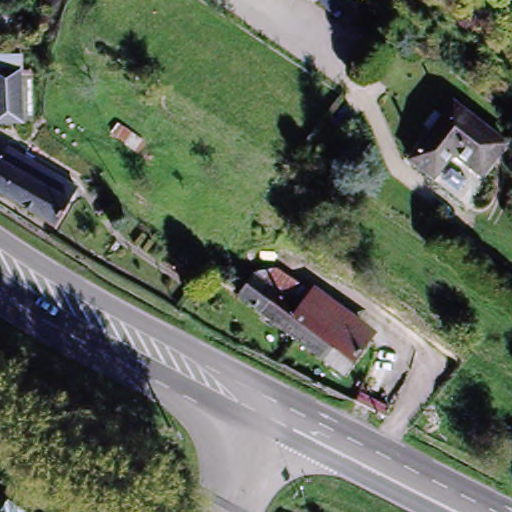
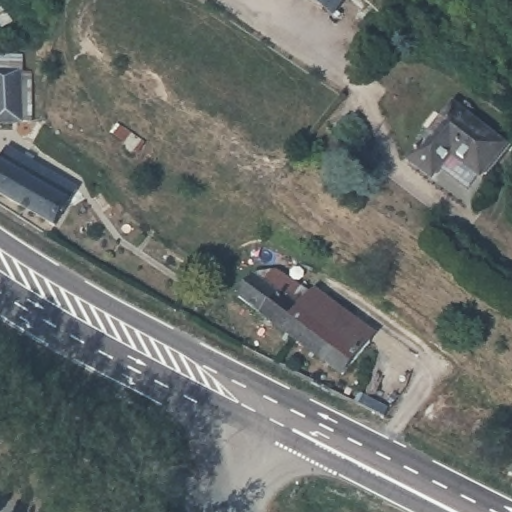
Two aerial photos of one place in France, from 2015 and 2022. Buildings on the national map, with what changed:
unchanged [(317,0),(349,0),(336,14),(317,0)]
unchanged [(3,127),(0,101),(0,71),(20,70),(26,126),(3,127)]
unchanged [(507,142),(483,177),(451,156),(436,180),(410,161),(453,102),(507,142)]
unchanged [(53,229),(0,195),(0,170),(11,150),(76,192),(53,229)]
unchanged [(268,283),(283,268),(364,333),(353,348),(268,283)]
unchanged [(334,371),(239,293),(256,274),(268,283),(353,348),(334,371)]

